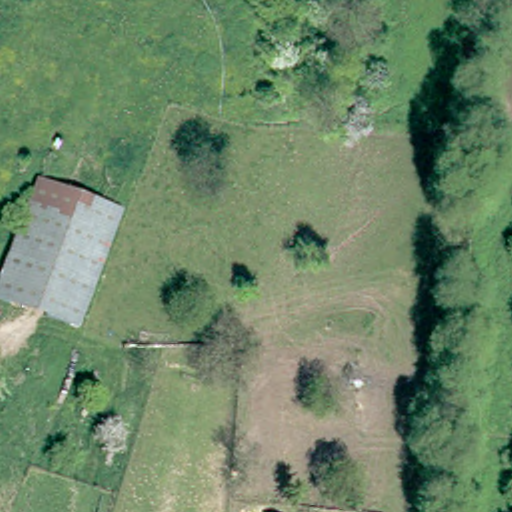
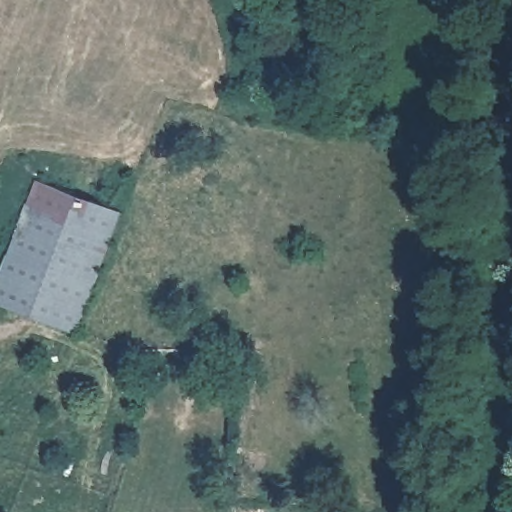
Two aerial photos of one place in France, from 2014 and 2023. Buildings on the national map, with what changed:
unchanged [(123,210),(80,327),(21,305),(0,297),(0,279),(38,178),(60,186),(123,210)]

